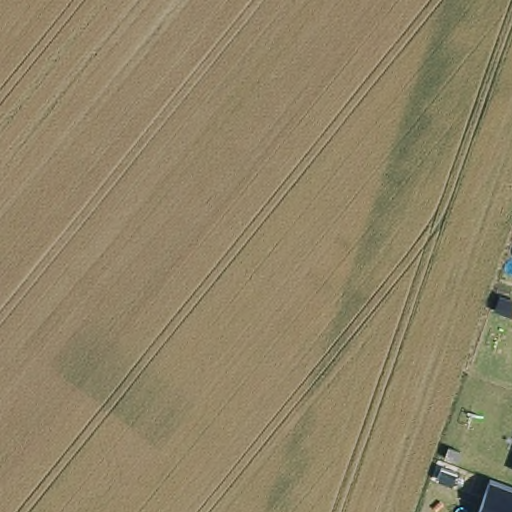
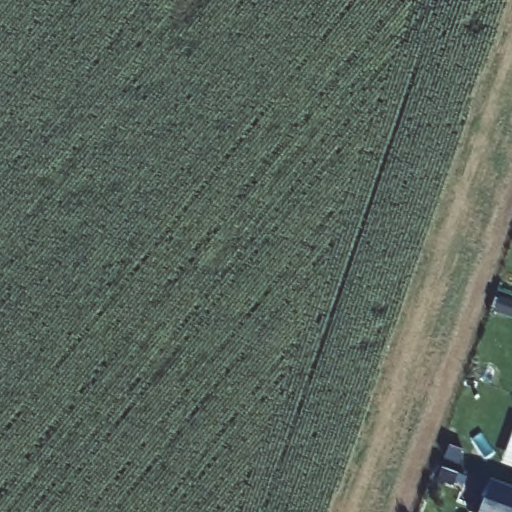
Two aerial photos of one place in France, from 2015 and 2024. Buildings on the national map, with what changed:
unchanged [(512,489),(512,512),(470,512),(481,477),(512,489)]

